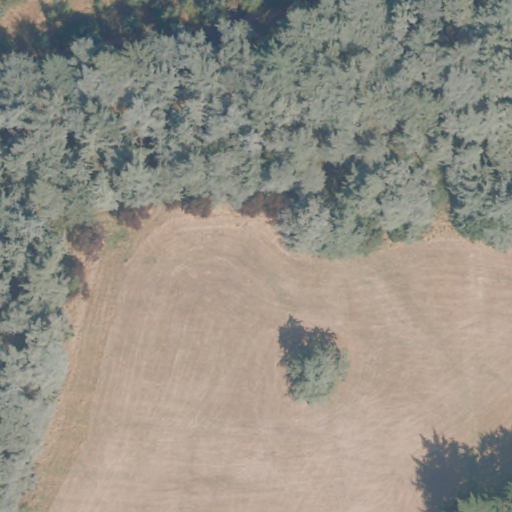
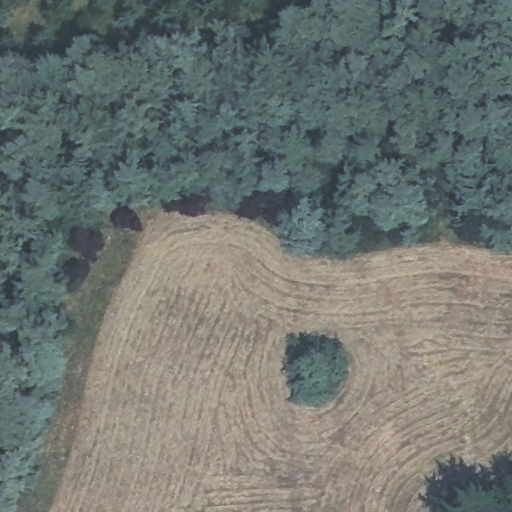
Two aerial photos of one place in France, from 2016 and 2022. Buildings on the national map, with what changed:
unchanged [(491,347),(491,335),(506,336),(506,347),(491,347)]

